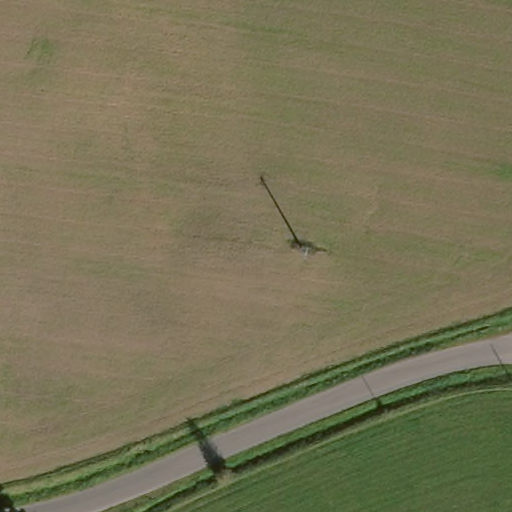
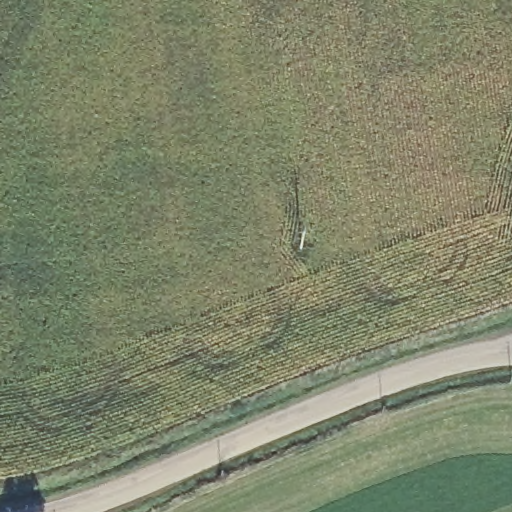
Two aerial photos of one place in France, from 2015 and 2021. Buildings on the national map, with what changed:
[]

